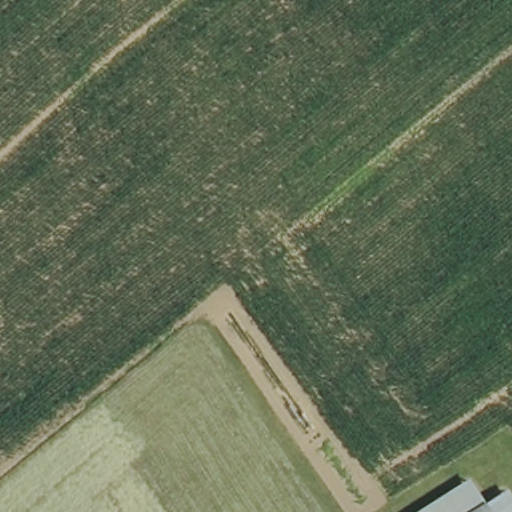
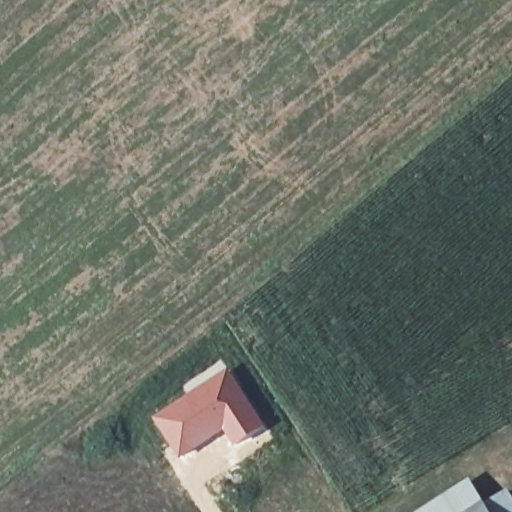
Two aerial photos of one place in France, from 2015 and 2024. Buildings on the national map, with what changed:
new [(228,368),(268,427),(236,448),(225,433),(180,460),(152,419),(228,368)]
unchanged [(473,479),(487,504),(512,491),(512,512),(422,512),(473,479)]

